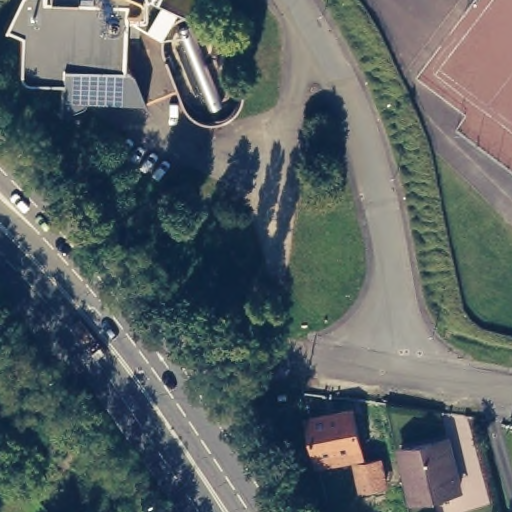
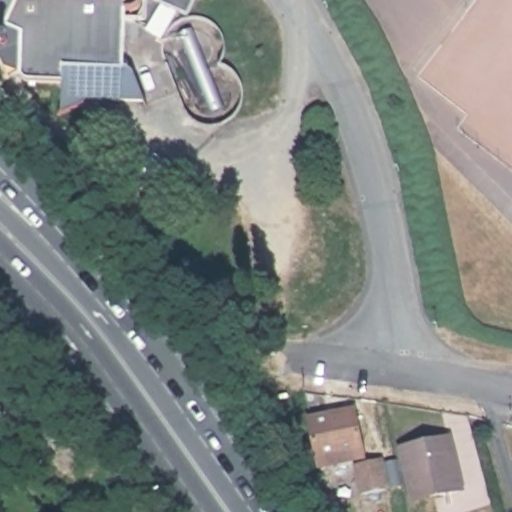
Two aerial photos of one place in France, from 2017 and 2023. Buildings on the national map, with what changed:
unchanged [(138,0),(135,3),(132,5),(129,5),(127,28),(127,54),(130,54),(143,87),(145,96),(85,95),(85,96),(85,97),(83,98),(82,99),(81,100),(80,101),(80,102),(61,108),(66,63),(34,62),(30,61),(26,58),(23,55),(22,50),(24,17),(7,10),(11,0),(138,0)]
unchanged [(147,25),(162,0),(192,0),(187,11),(177,7),(161,34),(147,25)]
unchanged [(308,454),(310,452),(305,414),(348,407),(356,454),(332,459),(330,458),(311,461),(308,454)]
unchanged [(396,444),(444,435),(455,485),(418,493),(414,473),(403,476),(396,444)]
unchanged [(383,478),(378,457),(392,454),(397,476),(383,478)]
unchanged [(378,483),(378,485),(384,512),(358,512),(353,490),(355,488),(350,464),(373,458),(378,483)]

